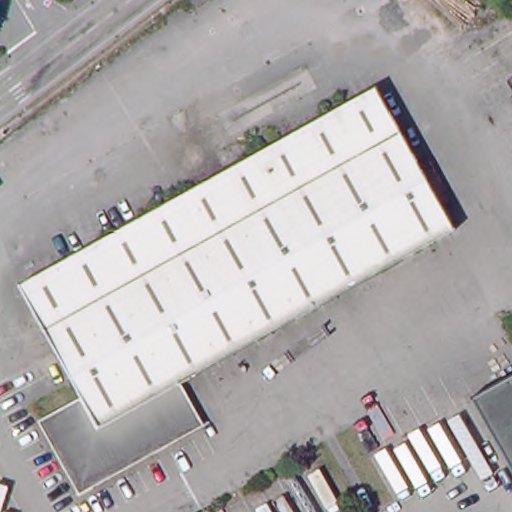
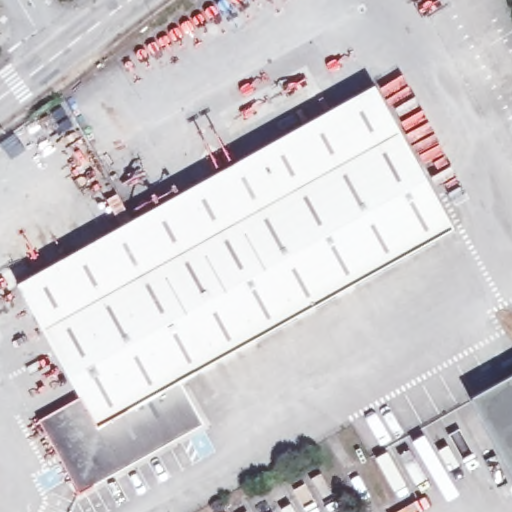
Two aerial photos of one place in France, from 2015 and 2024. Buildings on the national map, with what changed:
unchanged [(18,287),(374,89),(454,230),(185,380),(175,386),(195,423),(164,440),(153,446),(81,486),(58,444),(46,423),(84,401),(18,287)]
unchanged [(512,384),(512,476),(472,406),(512,384)]

